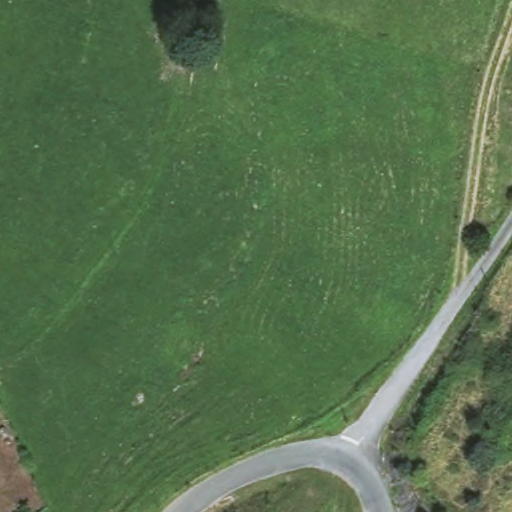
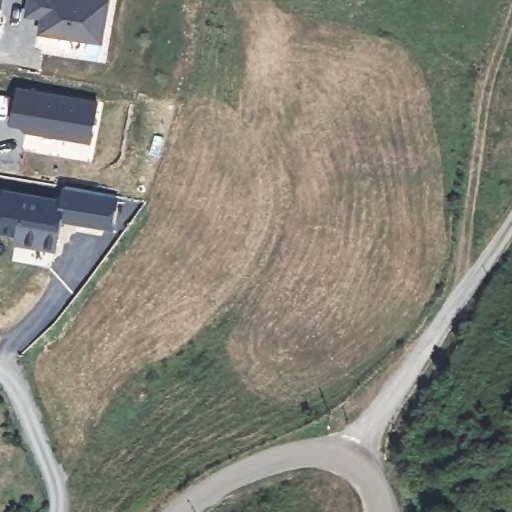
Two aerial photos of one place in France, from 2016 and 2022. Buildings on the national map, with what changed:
new [(0,8),(0,0),(2,0),(0,8)]
new [(94,0),(107,2),(100,44),(39,34),(41,19),(25,16),(28,0),(94,0)]
new [(17,89),(97,103),(90,142),(35,132),(35,127),(11,123),(17,89)]
new [(4,193),(62,203),(64,189),(116,198),(110,230),(59,221),(54,251),(16,245),(17,236),(0,234),(0,213),(4,193)]

